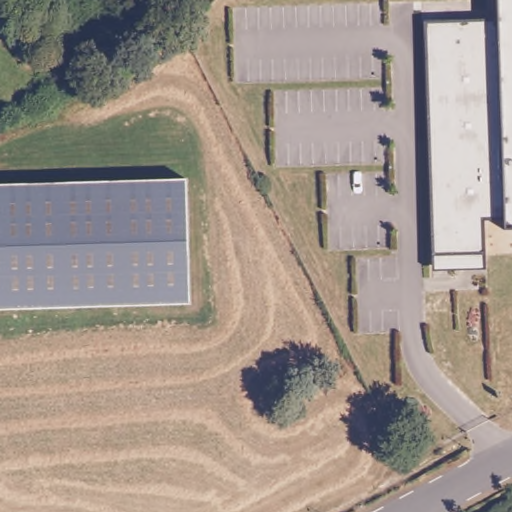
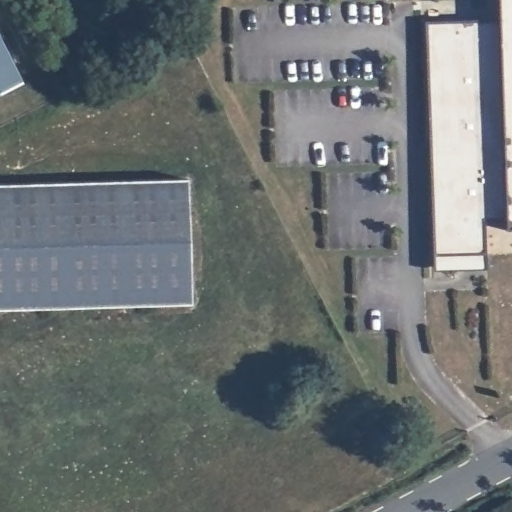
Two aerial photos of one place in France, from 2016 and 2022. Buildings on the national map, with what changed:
unchanged [(429,259),(422,24),(495,21),(495,0),(512,0),(512,233),(501,234),(501,224),(481,224),(482,257),(483,273),(429,274),(429,259)]
new [(0,91),(0,41),(20,81),(0,91)]
unchanged [(0,182),(186,170),(192,294),(116,299),(99,300),(0,307),(0,182)]

